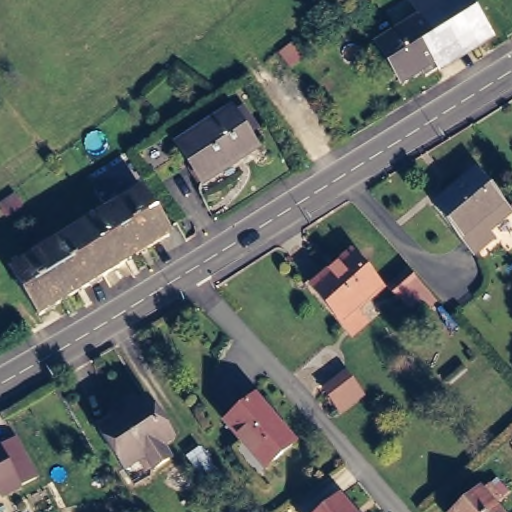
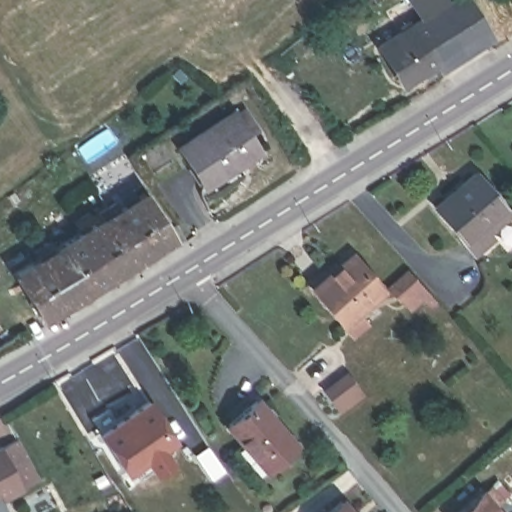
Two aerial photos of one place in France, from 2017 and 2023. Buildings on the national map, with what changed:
unchanged [(413,12),(432,0),(443,0),(452,13),(468,4),(492,42),(439,76),(410,94),(385,57),(389,54),(425,31),(413,12)]
unchanged [(236,114),(259,150),(203,186),(179,149),(236,114)]
unchanged [(491,228),(495,232),(475,250),(435,203),(474,169),(510,211),(491,228)]
unchanged [(120,204),(124,209),(149,194),(175,237),(140,258),(111,209),(120,204)]
unchanged [(111,209),(140,258),(109,278),(83,235),(77,225),(109,205),(111,209)]
unchanged [(55,242),(59,248),(83,235),(109,278),(77,298),(47,248),(55,242)]
unchanged [(77,298),(45,318),(19,275),(42,260),(39,253),(47,248),(77,298)]
unchanged [(320,285),(357,253),(387,287),(360,310),(369,321),(358,330),(354,325),(349,319),(320,285)]
unchanged [(412,306),(395,286),(413,272),(430,291),(412,306)]
unchanged [(250,443),(231,423),(261,397),(302,441),(277,461),(272,466),(250,443)]
unchanged [(173,436),(160,445),(169,457),(155,467),(146,455),(124,468),(101,431),(150,399),(173,436)]
unchanged [(0,496),(0,450),(17,441),(37,480),(2,499),(0,496)]
unchanged [(497,512),(462,512),(482,495),(497,512)]
unchanged [(354,512),(326,512),(342,498),(354,512)]

